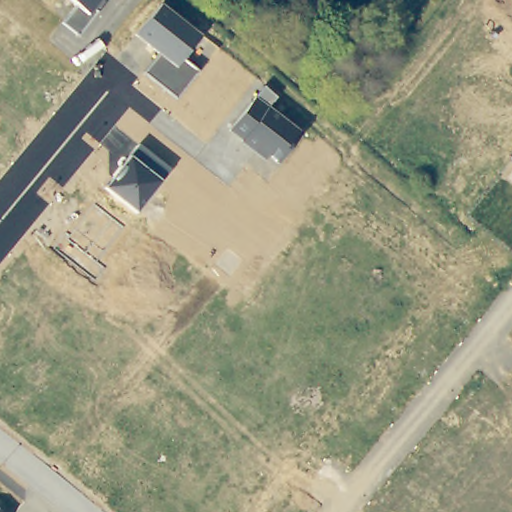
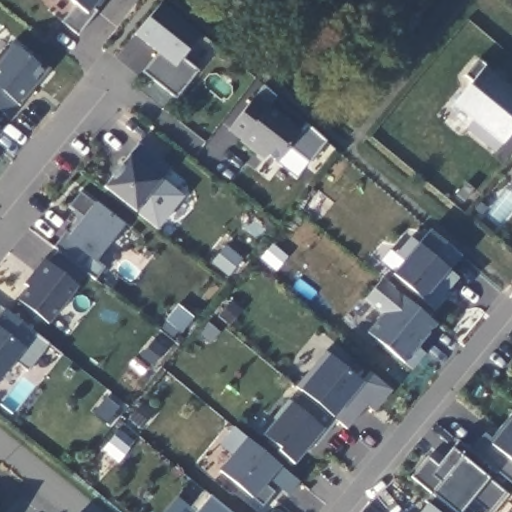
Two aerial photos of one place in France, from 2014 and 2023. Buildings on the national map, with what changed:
unchanged [(91,12),(77,33),(62,21),(76,4),(70,0),(101,0),(91,12)]
unchanged [(202,34),(182,59),(196,70),(175,97),(144,72),(159,53),(135,33),(161,4),(202,34)]
new [(29,58),(32,55),(50,70),(37,85),(34,82),(29,87),(33,91),(19,108),(15,104),(5,117),(0,113),(0,58),(12,44),(29,58)]
new [(497,151),(468,127),(472,120),(454,105),(473,81),(466,76),(480,59),(492,68),(488,70),(512,90),(512,133),(497,151)]
unchanged [(264,85),(277,97),(270,107),(302,132),(278,163),(267,156),(265,159),(240,141),(242,139),(230,129),(255,96),(264,85)]
new [(0,114),(0,113),(1,113),(0,114)]
unchanged [(130,156),(139,144),(172,168),(161,182),(137,212),(106,186),(130,156)]
new [(125,226),(97,262),(105,269),(96,281),(86,273),(48,324),(17,300),(29,285),(24,283),(42,258),(47,262),(57,250),(52,247),(65,231),(69,234),(94,202),(125,226)]
new [(460,255),(448,269),(458,277),(447,291),(442,287),(428,303),(393,274),(404,261),(397,255),(411,238),(418,244),(430,229),(460,255)]
new [(436,324),(426,336),(422,333),(413,344),(425,353),(412,370),(367,332),(382,314),(365,300),(382,279),(436,324)]
new [(27,372),(15,363),(0,382),(0,313),(4,308),(48,344),(27,372)]
new [(356,416),(343,431),(292,389),(322,353),(358,383),(366,374),(388,392),(371,414),(360,405),(363,407),(356,416)]
new [(285,402),(289,405),(299,394),(333,423),(312,448),(308,444),(291,466),(274,452),(276,450),(260,436),(272,422),(270,420),(285,402)]
new [(509,488),(467,452),(481,436),(491,444),(498,435),(495,432),(511,413),(512,414),(512,484),(509,488)]
new [(300,482),(289,496),(268,479),(265,484),(275,491),(262,508),(217,473),(232,455),(219,445),(233,426),(300,482)]
new [(427,496),(407,479),(425,459),(435,467),(455,443),(490,472),(483,480),(503,496),(489,512),(431,512),(421,503),(427,496)]
new [(195,512),(190,508),(204,491),(229,512),(195,512)]
new [(431,512),(420,512),(425,507),(431,512)]

